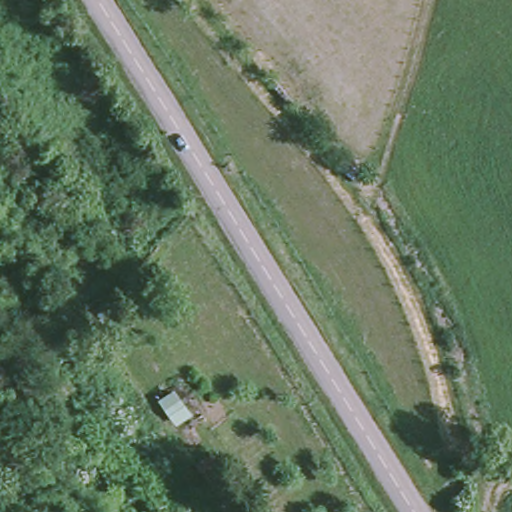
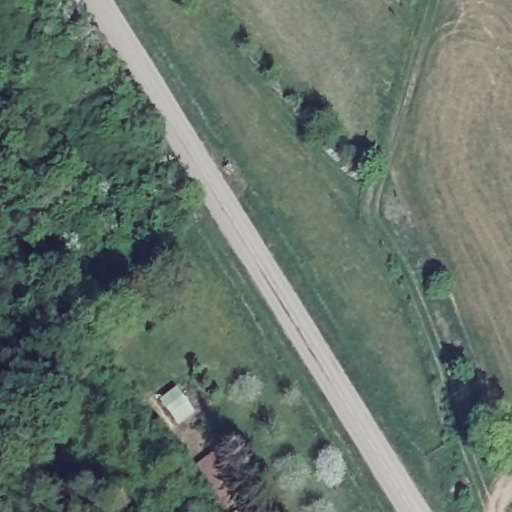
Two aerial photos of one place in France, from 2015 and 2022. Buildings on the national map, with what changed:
unchanged [(173,425),(155,396),(176,385),(195,418),(173,425)]

